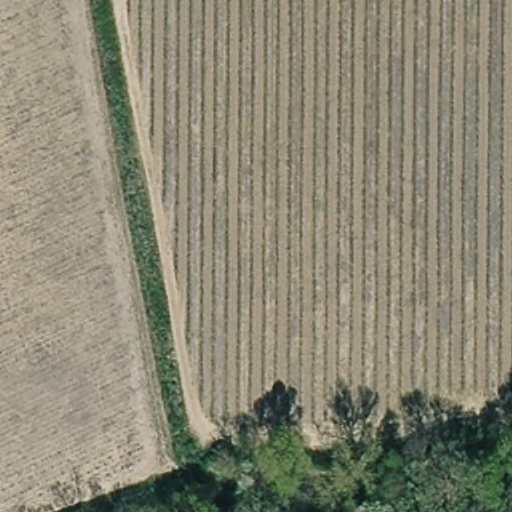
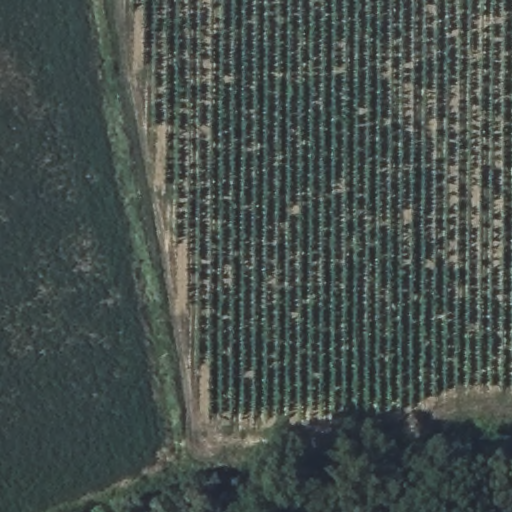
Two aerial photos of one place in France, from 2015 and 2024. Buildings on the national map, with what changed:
[]

